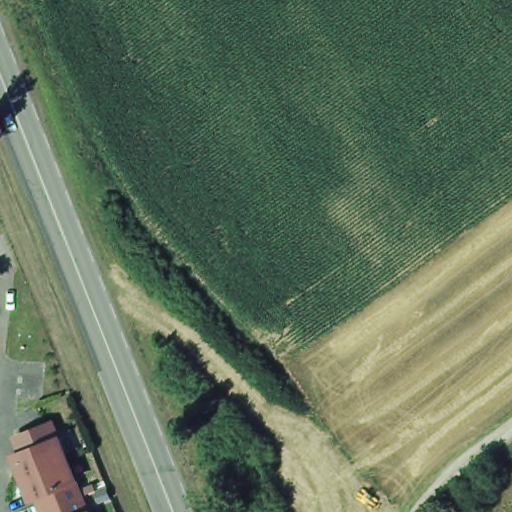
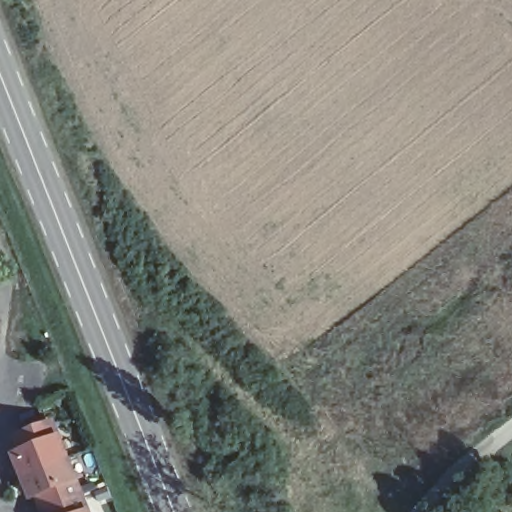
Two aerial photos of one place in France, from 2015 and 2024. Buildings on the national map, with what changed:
unchanged [(53,418),(58,430),(76,479),(90,512),(43,512),(36,495),(30,497),(12,452),(19,449),(13,433),(53,418)]

